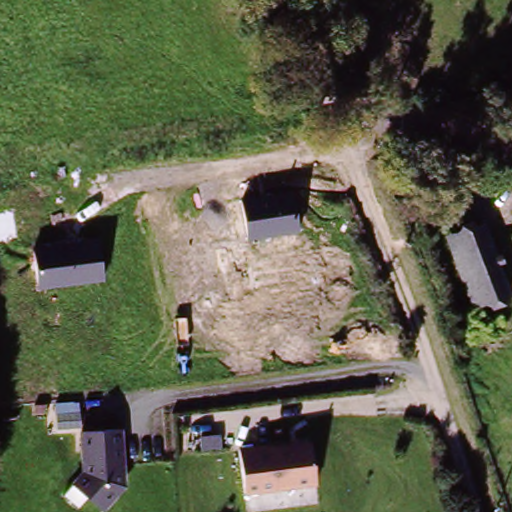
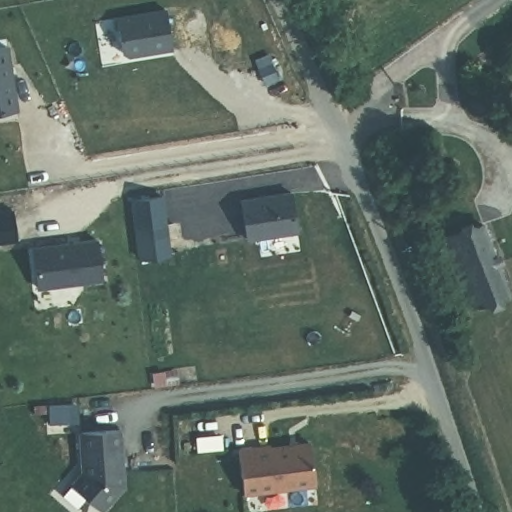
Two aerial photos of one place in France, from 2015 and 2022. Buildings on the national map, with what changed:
new [(170,12),(175,52),(129,57),(124,54),(120,19),(170,12)]
new [(7,45),(17,110),(0,113),(0,46),(7,45)]
unchanged [(240,200),(292,190),(299,230),(247,239),(240,200)]
new [(162,195),(170,255),(138,260),(130,199),(162,195)]
new [(17,239),(0,241),(0,210),(12,209),(17,239)]
unchanged [(480,227),(505,295),(477,305),(453,236),(480,227)]
unchanged [(33,249),(99,239),(104,278),(37,286),(33,249)]
demolished [(504,422),(512,443),(512,458),(500,463),(487,428),(504,422)]
unchanged [(82,471),(80,432),(125,427),(130,488),(111,512),(107,512),(71,485),(82,471)]
unchanged [(239,448),(311,438),(317,482),(242,491),(239,448)]

